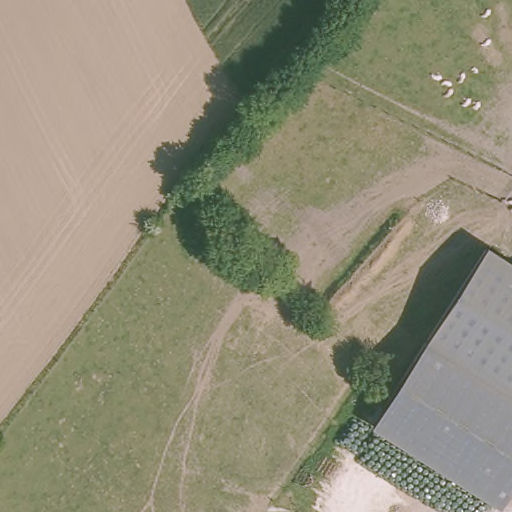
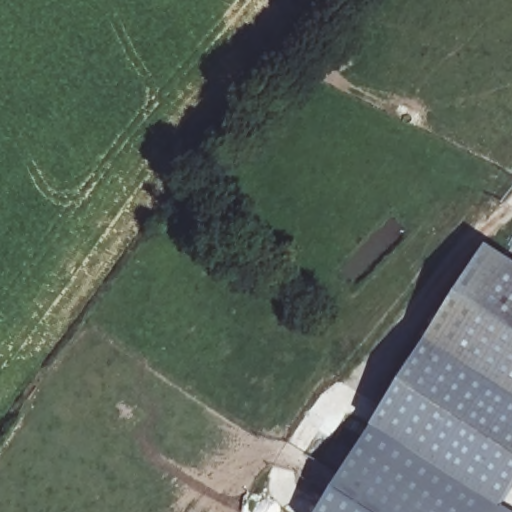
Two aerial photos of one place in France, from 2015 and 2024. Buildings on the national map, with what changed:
unchanged [(512,487),(500,506),(371,425),(485,245),(512,262),(512,487)]
new [(510,512),(320,512),(371,425),(500,506),(510,512)]

